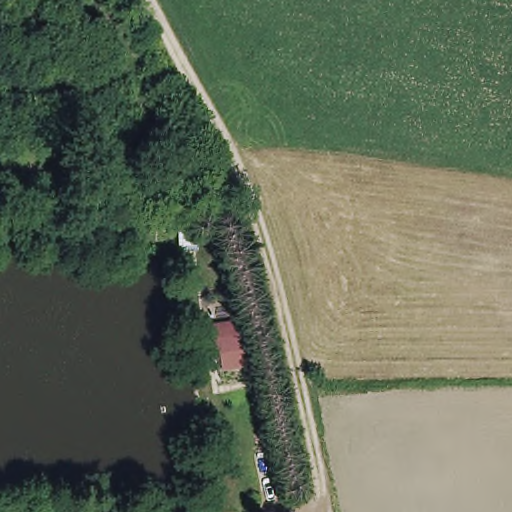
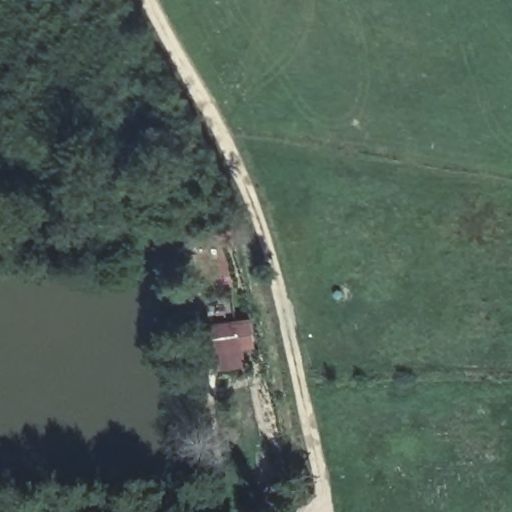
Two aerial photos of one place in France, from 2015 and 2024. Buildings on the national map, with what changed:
unchanged [(240,317),(247,350),(212,358),(205,321),(240,317)]

